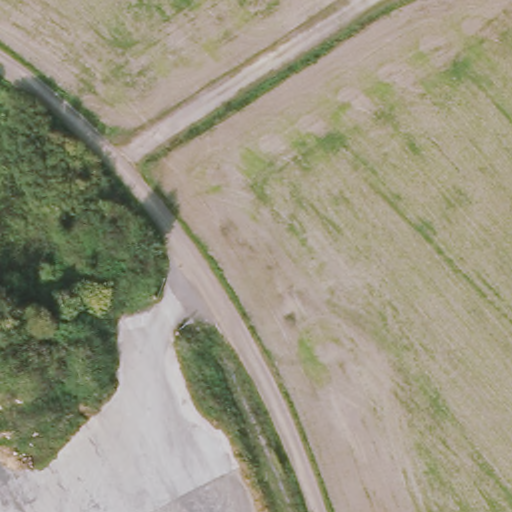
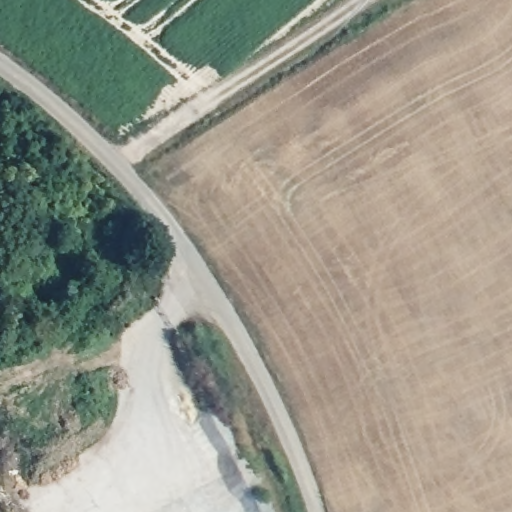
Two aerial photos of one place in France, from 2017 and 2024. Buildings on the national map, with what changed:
[]

